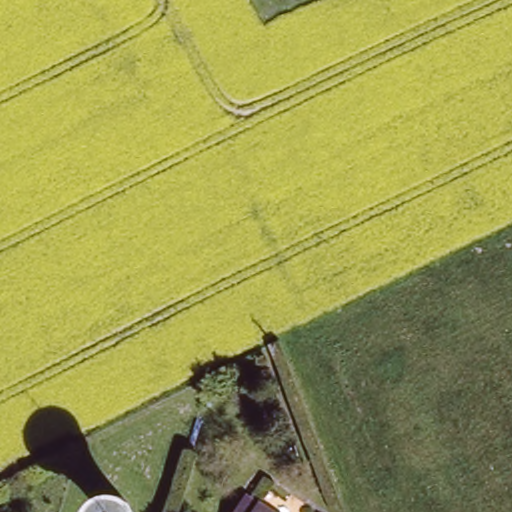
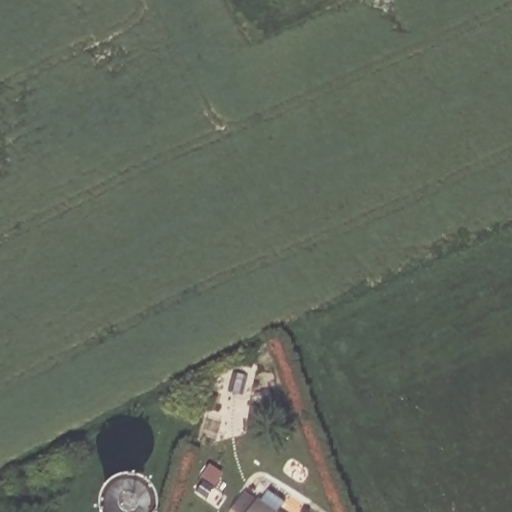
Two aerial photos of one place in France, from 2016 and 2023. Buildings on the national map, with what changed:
unchanged [(260,503),(273,512),(233,512),(246,493),(260,503)]

